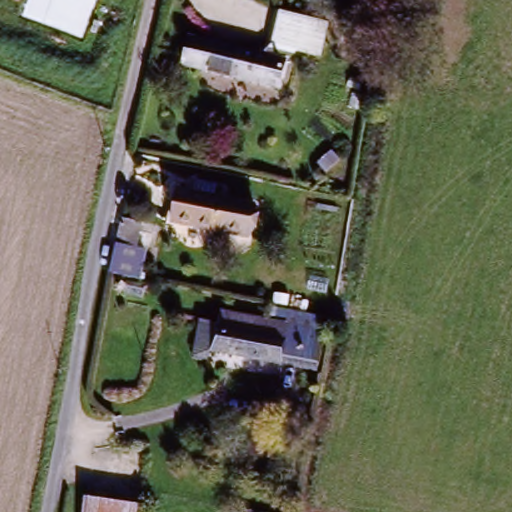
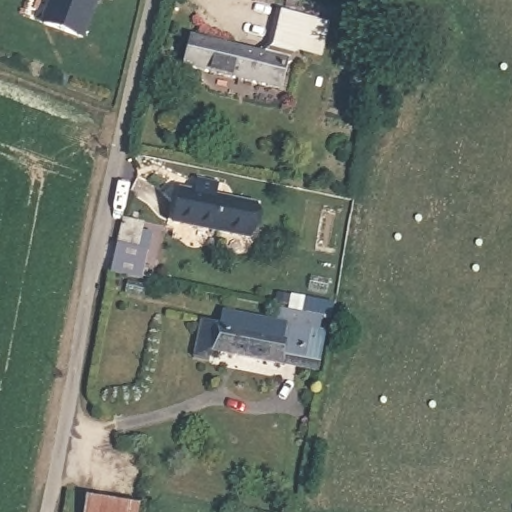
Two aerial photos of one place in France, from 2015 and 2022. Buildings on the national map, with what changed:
new [(85,41),(40,24),(49,0),(100,0),(85,41)]
unchanged [(323,61),(293,54),(290,63),(284,91),(182,69),(187,37),(269,55),(281,11),(328,25),(323,61)]
unchanged [(217,230),(171,223),(177,192),(222,200),(217,230)]
unchanged [(257,207),(251,238),(217,230),(222,200),(257,207)]
unchanged [(139,285),(99,278),(103,255),(110,223),(142,229),(136,256),(145,259),(139,285)]
unchanged [(322,347),(320,368),(299,366),(211,358),(211,364),(193,364),(196,322),(214,323),(219,324),(222,309),(280,315),(282,319),(308,321),(308,333),(307,346),(322,347)]
unchanged [(139,506),(138,512),(89,512),(92,496),(139,506)]

